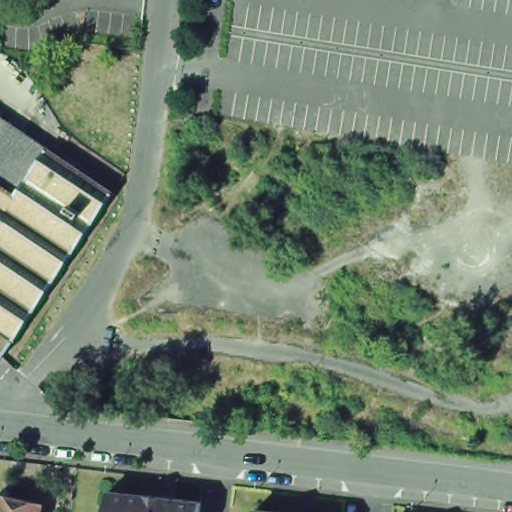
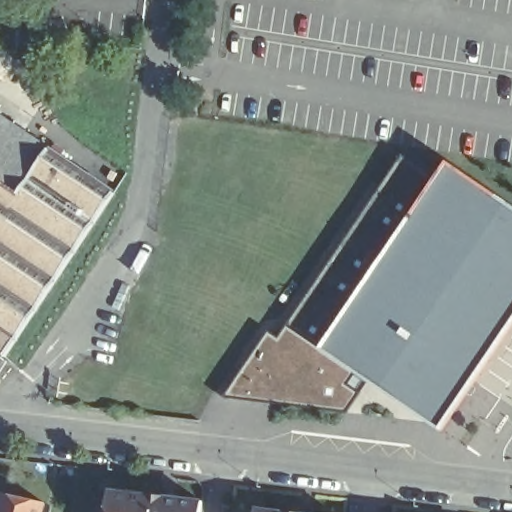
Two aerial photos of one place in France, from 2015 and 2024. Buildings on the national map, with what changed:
demolished [(11,87),(0,80),(0,50),(23,66),(11,87)]
unchanged [(0,356),(0,120),(109,192),(0,356)]
new [(364,386),(346,413),(223,397),(264,335),(276,344),(284,327),(399,157),(431,180),(440,162),(512,213),(512,313),(433,431),(364,386)]
unchanged [(104,512),(106,491),(198,502),(197,512),(104,512)]
unchanged [(32,512),(0,512),(0,496),(34,504),(32,512)]
unchanged [(281,512),(257,512),(258,509),(281,512)]

